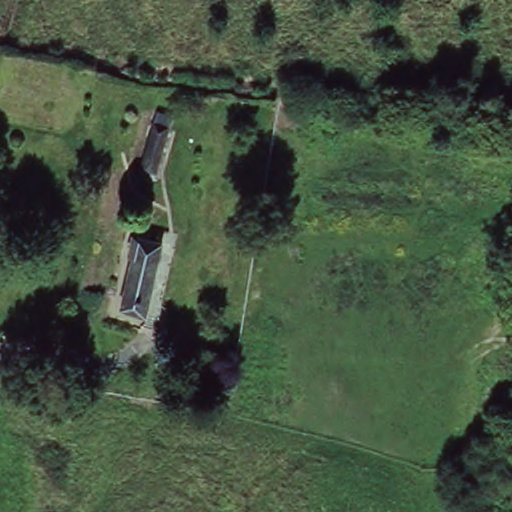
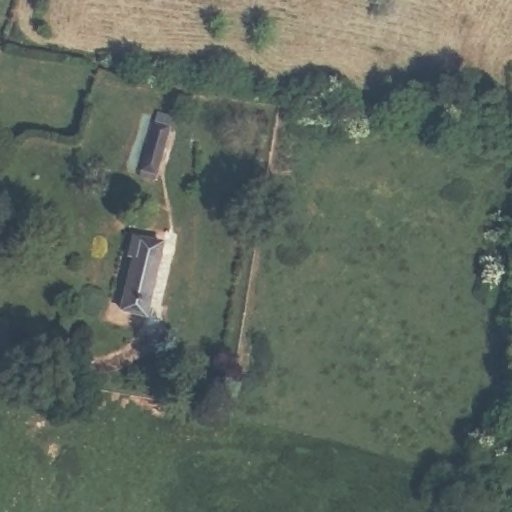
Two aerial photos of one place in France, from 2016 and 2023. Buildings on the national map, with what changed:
unchanged [(175,119),(156,178),(138,172),(157,113),(175,119)]
unchanged [(156,241),(141,316),(115,310),(132,235),(156,241)]

